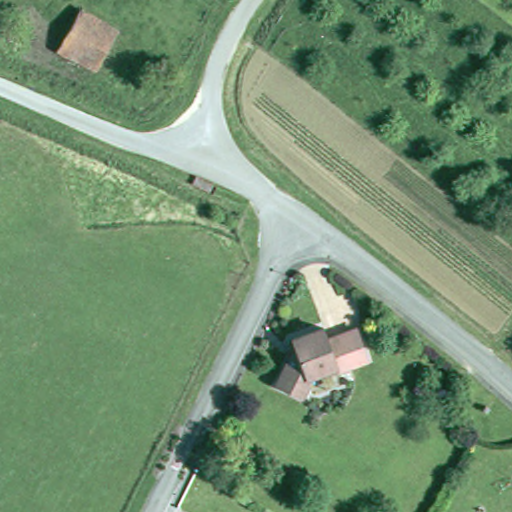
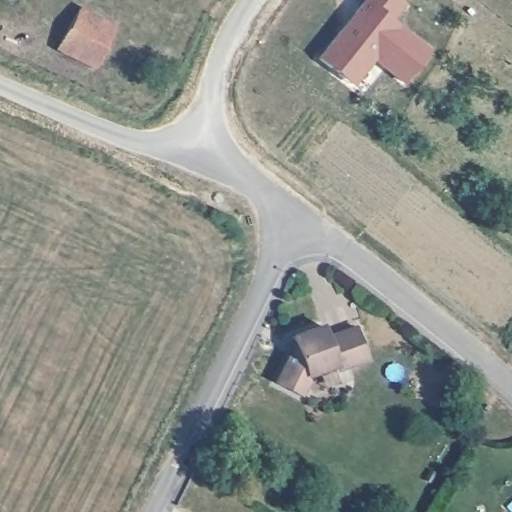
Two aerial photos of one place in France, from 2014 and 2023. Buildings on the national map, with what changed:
new [(362,0),(403,0),(406,2),(394,19),(431,48),(404,83),(374,59),(354,85),(317,57),(362,0)]
unchanged [(99,69),(63,48),(86,10),(120,30),(99,69)]
unchanged [(291,335),(322,322),(328,334),(355,324),(367,354),(336,366),(335,361),(306,371),(297,391),(275,379),(295,341),(291,335)]

